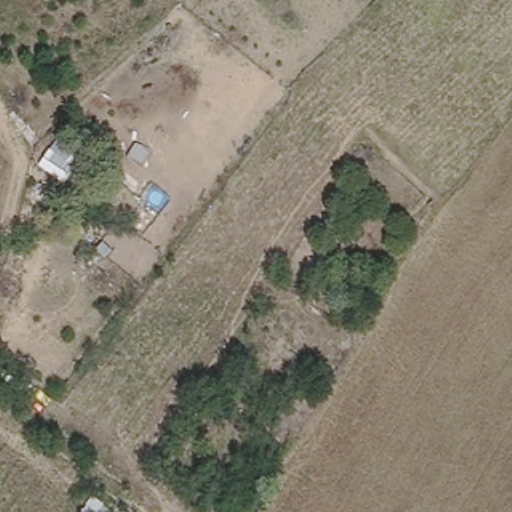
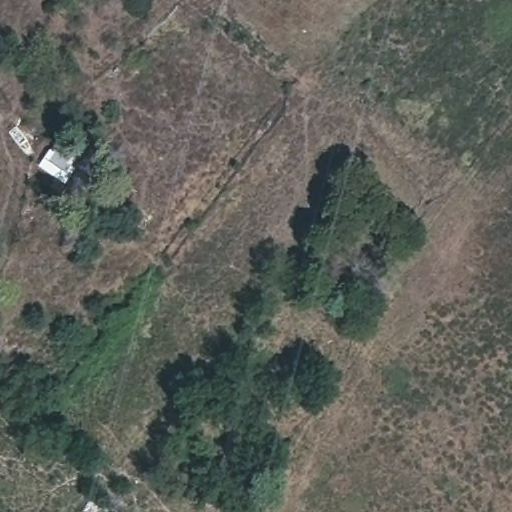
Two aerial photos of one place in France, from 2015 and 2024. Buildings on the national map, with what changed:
unchanged [(67,184),(40,165),(52,148),(80,167),(67,184)]

